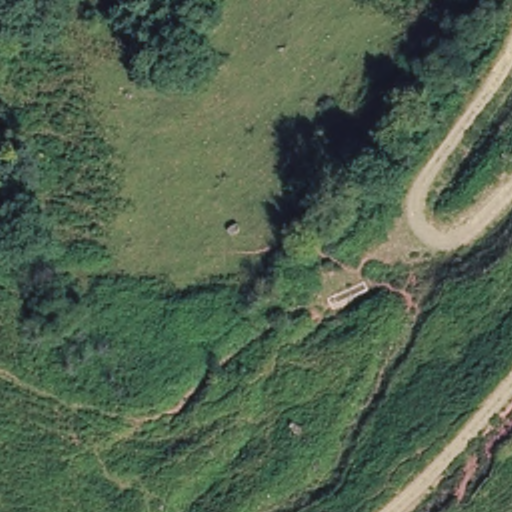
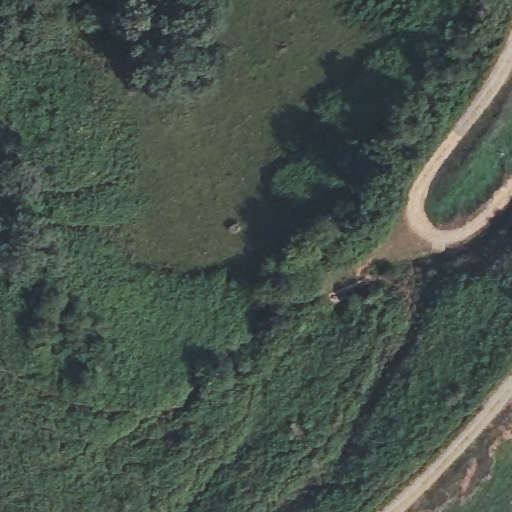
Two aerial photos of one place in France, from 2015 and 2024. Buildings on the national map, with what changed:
unchanged [(276,265),(290,272),(275,298),(262,287),(276,265)]

